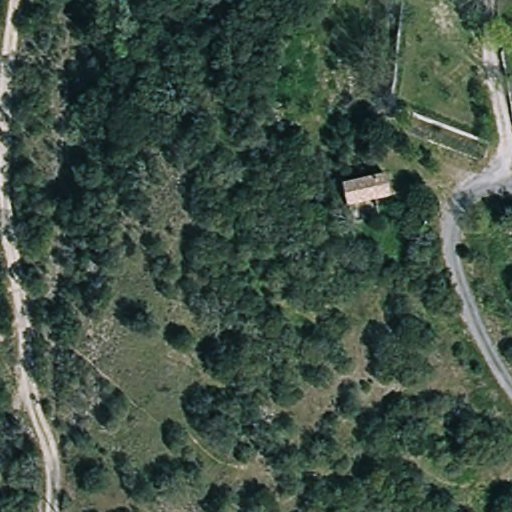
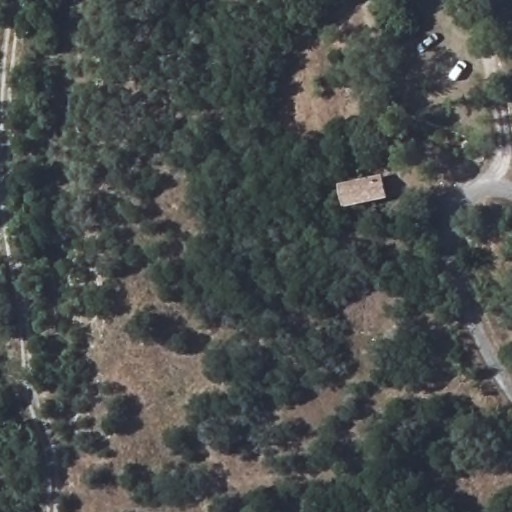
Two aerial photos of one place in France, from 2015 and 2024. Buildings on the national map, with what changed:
unchanged [(372,200),(345,206),(342,207),(337,189),(380,178),(385,197),(372,200)]

